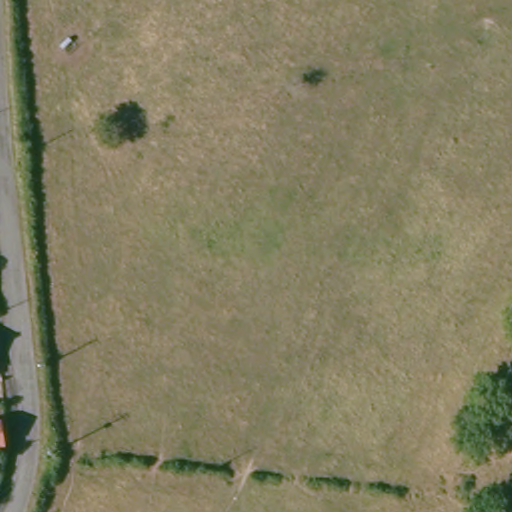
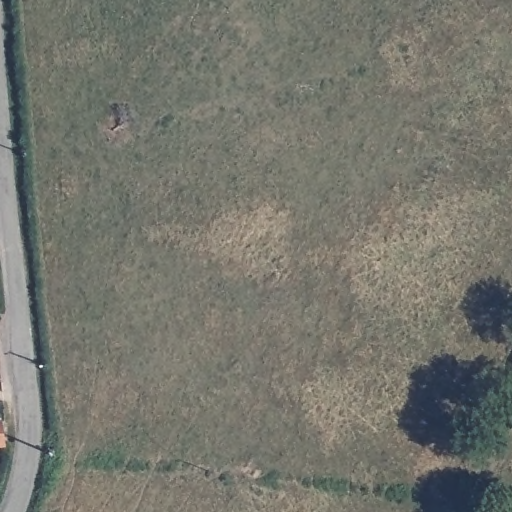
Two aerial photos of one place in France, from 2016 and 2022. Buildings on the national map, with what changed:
unchanged [(5,426),(8,463),(0,463),(0,427),(5,426)]
unchanged [(2,478),(0,478),(0,463),(2,478)]

